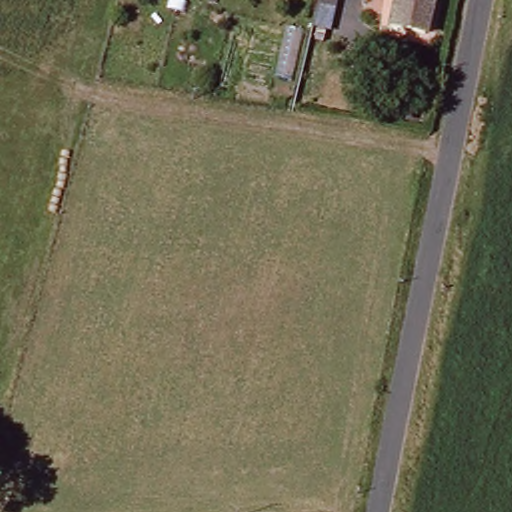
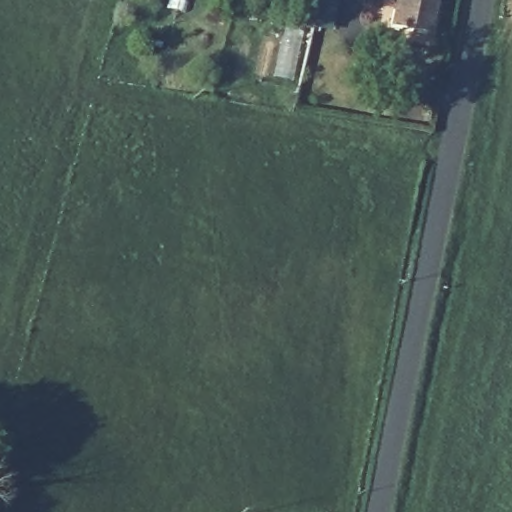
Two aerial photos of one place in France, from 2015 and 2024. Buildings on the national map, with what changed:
unchanged [(427,36),(390,27),(397,0),(435,0),(427,36)]

